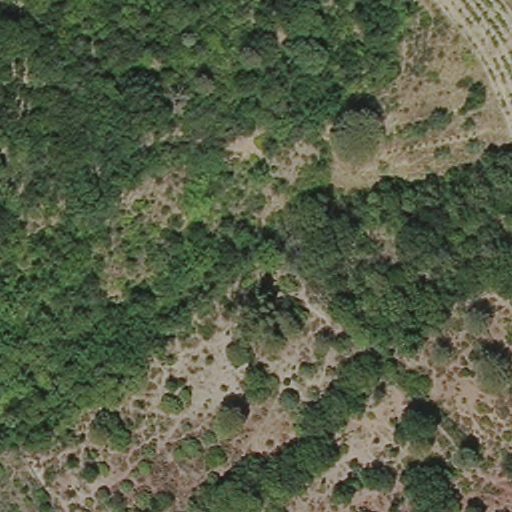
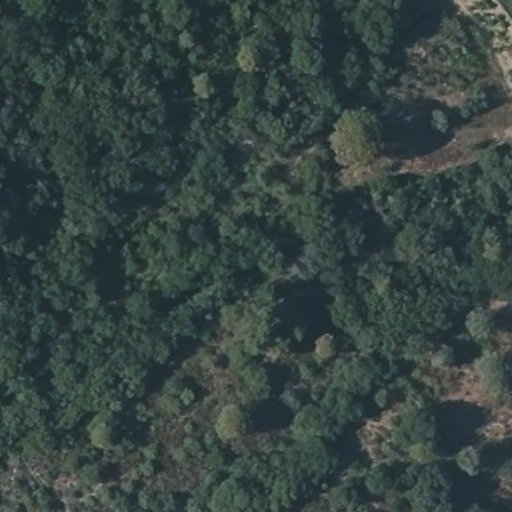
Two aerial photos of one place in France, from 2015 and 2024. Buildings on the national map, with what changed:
unchanged [(473,215),(480,232),(462,238),(456,220),(473,215)]

